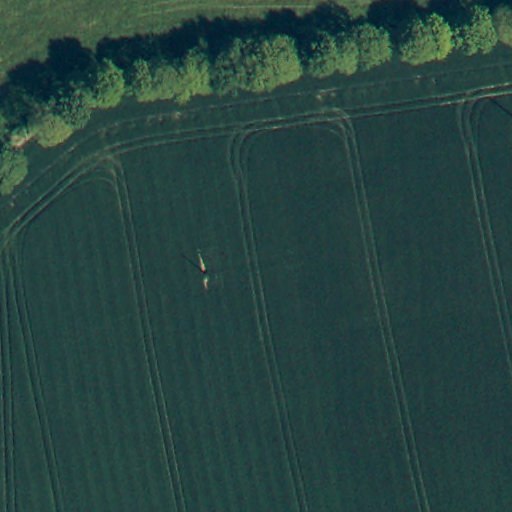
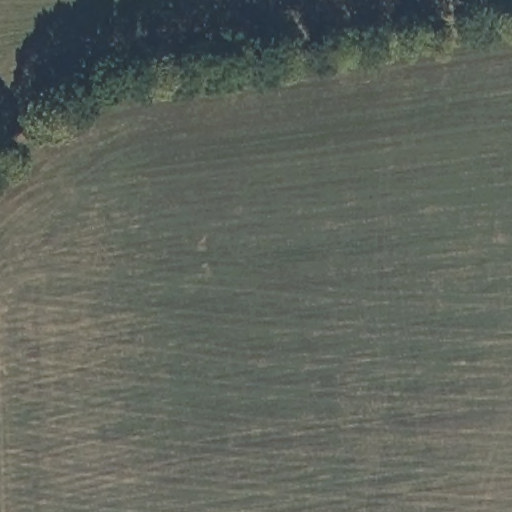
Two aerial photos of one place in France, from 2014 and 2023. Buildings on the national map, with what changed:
[]

